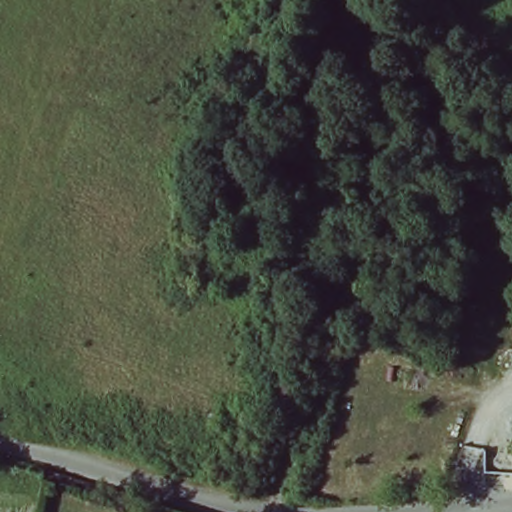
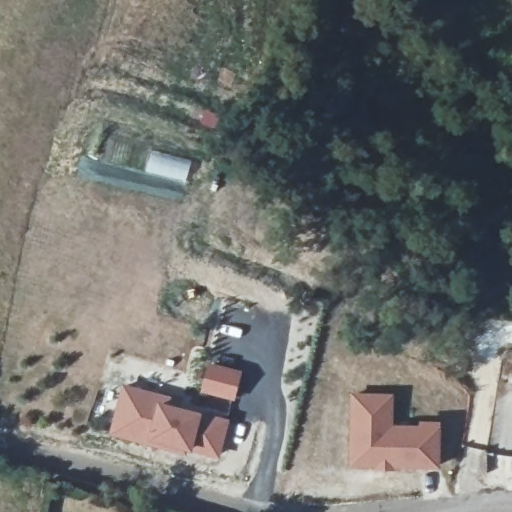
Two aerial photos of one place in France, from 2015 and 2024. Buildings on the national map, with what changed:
new [(243,371),(233,400),(200,391),(208,362),(243,371)]
new [(186,400),(183,405),(202,411),(230,418),(219,461),(189,451),(188,456),(110,435),(122,382),(186,400)]
new [(394,393),(393,425),(419,425),(419,421),(442,422),(440,470),(394,469),(393,472),(376,471),(376,467),(350,466),(351,393),(394,393)]

